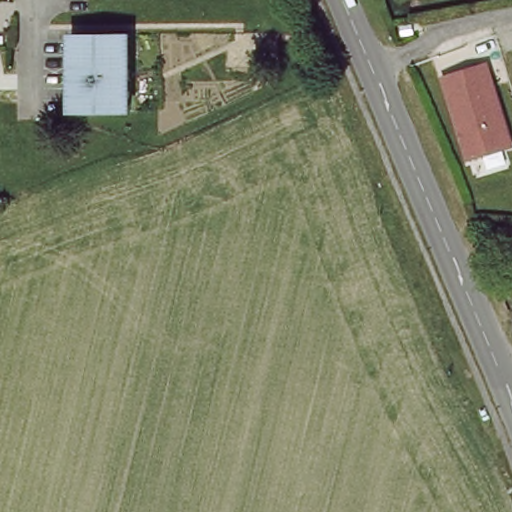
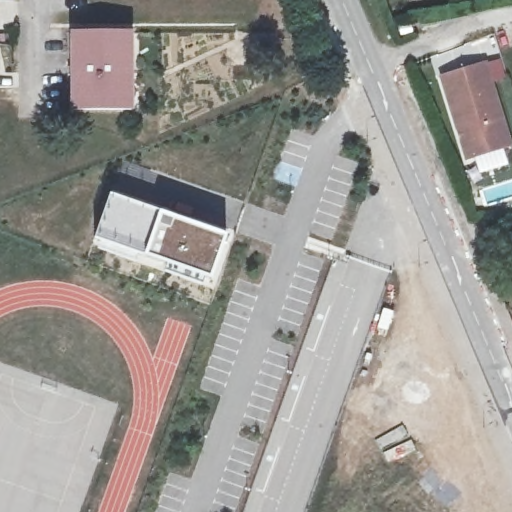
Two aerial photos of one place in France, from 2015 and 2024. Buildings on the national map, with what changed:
unchanged [(128,115),(73,108),(81,31),(136,38),(128,115)]
unchanged [(442,76),(483,64),(510,149),(472,161),(442,76)]
new [(226,235),(210,280),(92,239),(109,193),(226,235)]

